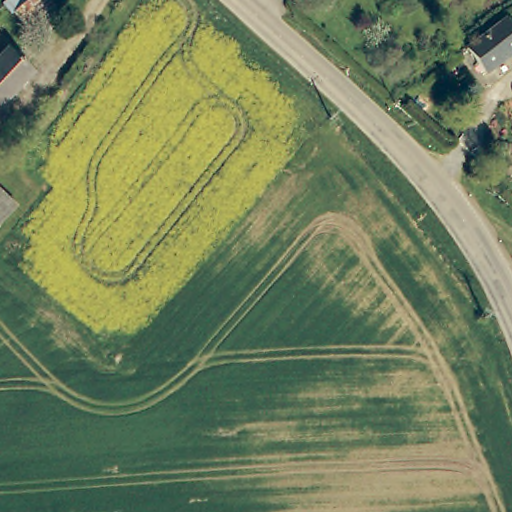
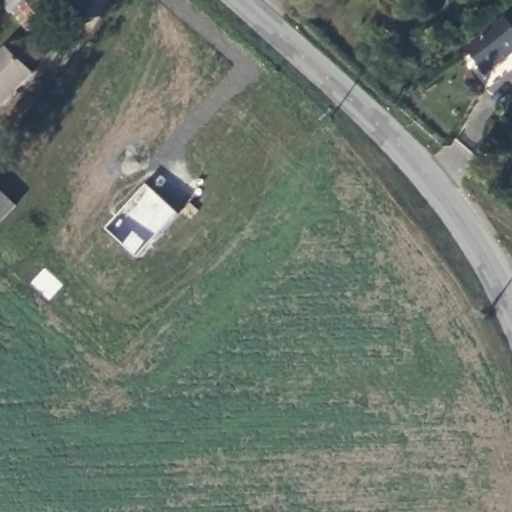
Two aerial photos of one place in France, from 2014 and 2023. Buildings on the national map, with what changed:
unchanged [(36,35),(10,9),(19,0),(45,0),(58,14),(36,35)]
unchanged [(512,50),(485,71),(467,49),(506,19),(512,25),(512,50)]
unchanged [(30,71),(0,104),(0,55),(6,49),(30,71)]
unchanged [(14,199),(0,215),(0,186),(14,199)]

